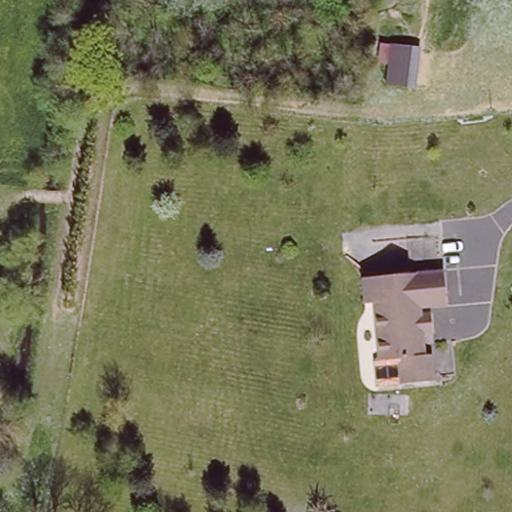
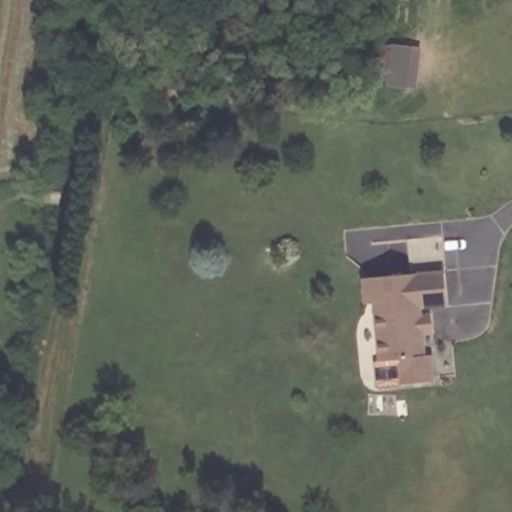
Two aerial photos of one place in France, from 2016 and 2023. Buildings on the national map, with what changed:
unchanged [(385,85),(388,66),(376,64),(379,43),(421,49),(415,89),(385,85)]
unchanged [(442,269),(447,305),(425,307),(425,314),(432,313),(435,334),(428,335),(433,378),(399,381),(396,358),(380,361),(375,302),(365,303),(363,280),(442,269)]

